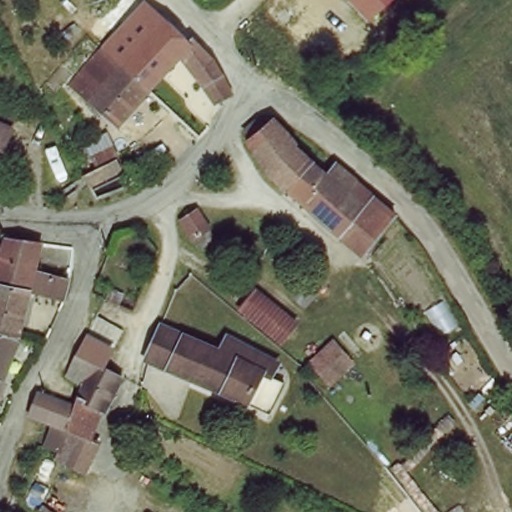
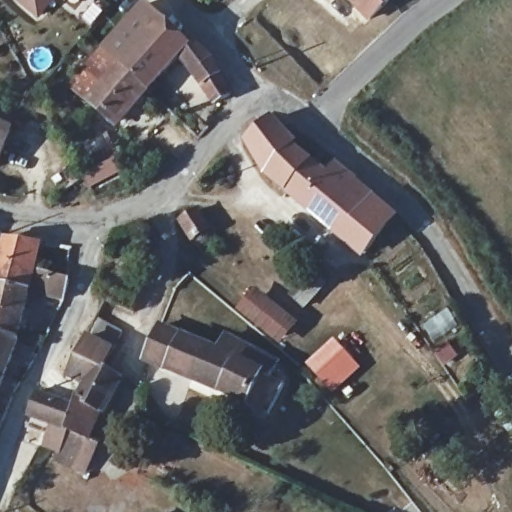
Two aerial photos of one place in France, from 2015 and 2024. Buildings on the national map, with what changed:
new [(37,19),(14,0),(51,0),(37,19)]
unchanged [(114,46),(123,35),(124,34),(127,31),(131,27),(133,25),(138,18),(139,17),(143,14),(143,13),(155,0),(162,0),(169,5),(170,7),(175,18),(177,22),(179,25),(183,28),(191,36),(194,39),(198,37),(203,42),(208,46),(212,50),(219,57),(221,59),(223,64),(226,69),(228,75),(231,80),(233,85),(236,90),(216,96),(182,55),(154,87),(152,85),(150,83),(146,79),(142,76),(138,73),(132,67),(131,66),(128,64),(126,62),(113,50),(111,48),(114,46)]
unchanged [(369,21),(351,0),(392,0),(369,21)]
unchanged [(113,50),(126,62),(128,64),(131,66),(132,67),(138,73),(142,76),(146,79),(150,83),(152,85),(154,87),(139,104),(124,120),(80,82),(84,77),(86,76),(93,68),(94,67),(98,62),(101,60),(103,58),(106,54),(108,51),(111,48),(113,50)]
unchanged [(0,154),(0,123),(9,127),(0,154)]
unchanged [(329,185),(306,212),(276,187),(253,154),(261,146),(252,141),(259,129),(262,130),(265,132),(267,134),(271,138),(281,133),(302,153),(298,159),(329,185)]
unchanged [(89,175),(91,174),(95,172),(99,170),(105,167),(110,165),(115,163),(119,160),(131,178),(133,183),(121,188),(115,190),(112,192),(102,196),(99,197),(89,175)]
unchanged [(329,185),(339,173),(396,222),(365,261),(306,212),(329,185)]
unchanged [(182,217),(198,207),(212,229),(209,238),(203,241),(198,242),(181,219),(182,217)]
unchanged [(11,238),(18,239),(46,242),(39,264),(72,274),(68,287),(67,292),(36,285),(23,331),(0,324),(0,283),(3,270),(8,255),(11,238)]
unchanged [(274,336),(259,321),(244,307),(259,289),(276,302),(292,316),(274,336)]
unchanged [(58,442),(61,430),(37,423),(43,403),(78,414),(79,411),(86,389),(68,383),(80,343),(83,344),(87,332),(90,322),(114,330),(104,366),(124,372),(114,411),(110,410),(102,437),(112,440),(103,472),(69,462),(71,456),(55,451),(58,442)]
unchanged [(11,376),(0,372),(0,324),(23,331),(11,376)]
unchanged [(158,330),(216,350),(220,339),(272,356),(268,372),(280,376),(270,409),(148,364),(158,330)]
unchanged [(328,383),(313,363),(336,342),(353,361),(328,383)]
unchanged [(1,411),(0,411),(0,372),(11,376),(1,411)]
unchanged [(0,411),(1,411),(0,416),(0,411)]

